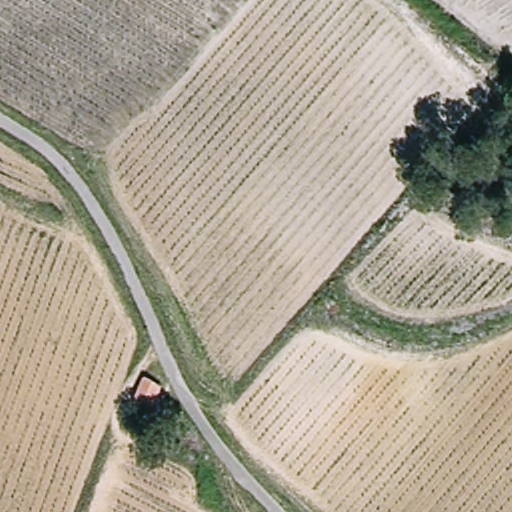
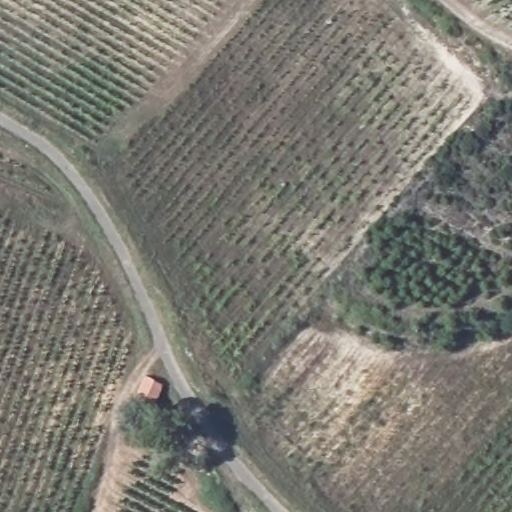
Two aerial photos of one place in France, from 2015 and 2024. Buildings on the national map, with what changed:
unchanged [(165,386),(161,402),(142,396),(148,378),(165,386)]

